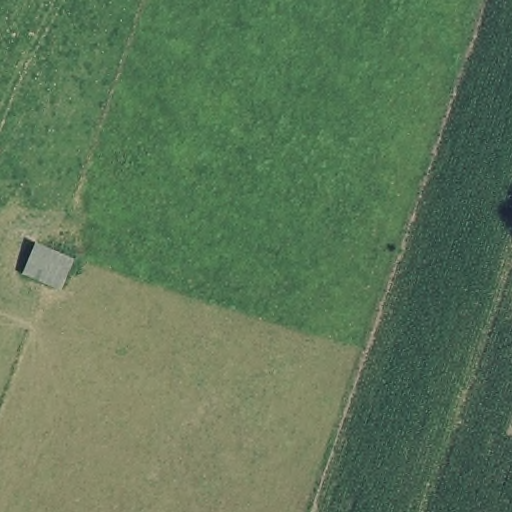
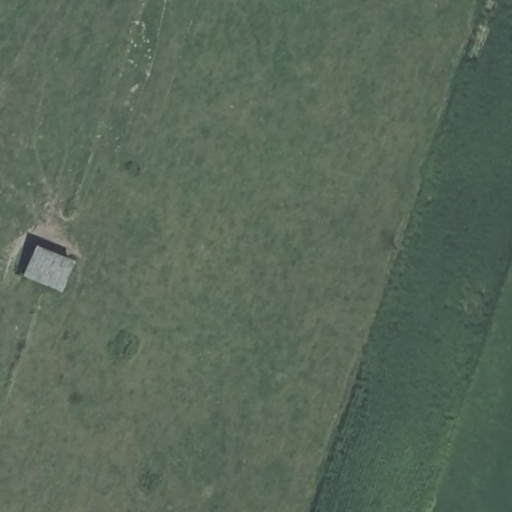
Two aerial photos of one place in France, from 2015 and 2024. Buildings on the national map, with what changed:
unchanged [(59,290),(19,276),(32,245),(70,259),(59,290)]

